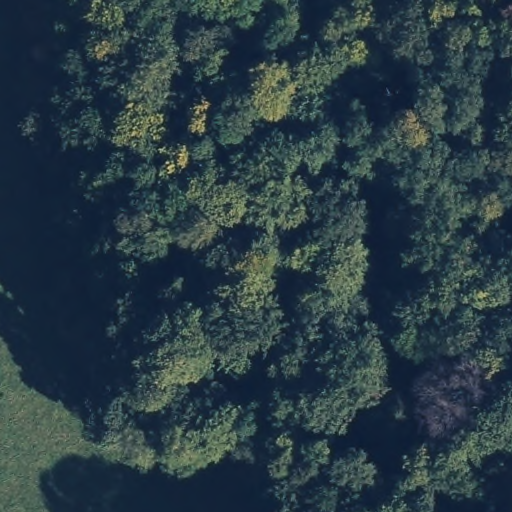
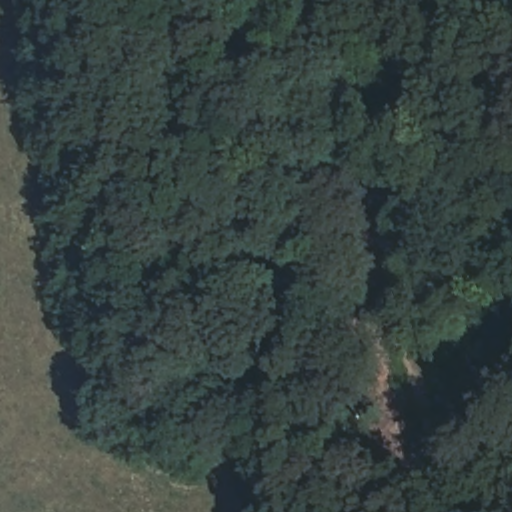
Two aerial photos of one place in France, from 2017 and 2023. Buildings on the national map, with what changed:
[]

